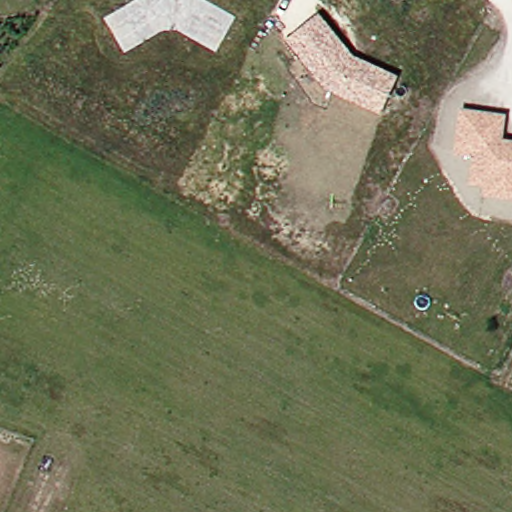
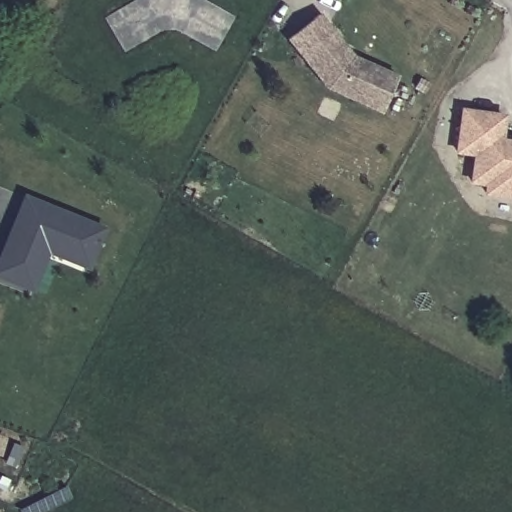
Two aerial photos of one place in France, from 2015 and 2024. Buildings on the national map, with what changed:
unchanged [(354,57),(398,77),(381,115),(324,90),(286,40),(318,14),(354,57)]
unchanged [(493,175),(478,174),(481,145),(462,143),(466,111),(506,114),(503,139),(512,140),(512,186),(492,185),(493,175)]
new [(105,229),(88,270),(50,255),(35,292),(0,277),(0,250),(22,198),(105,229)]
new [(7,438),(1,457),(0,457),(0,436),(7,438)]

